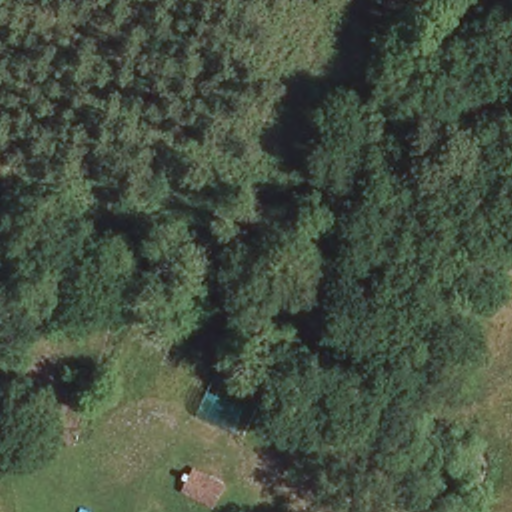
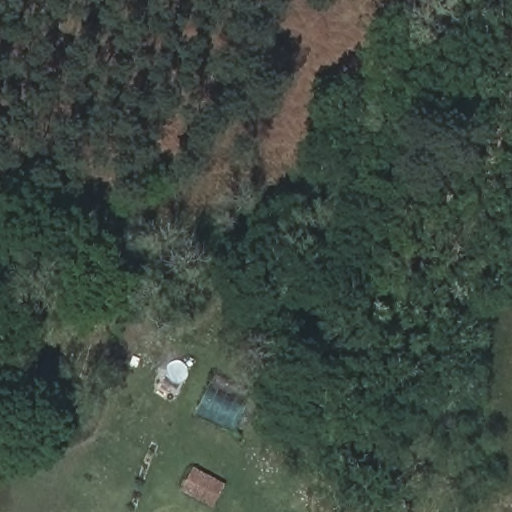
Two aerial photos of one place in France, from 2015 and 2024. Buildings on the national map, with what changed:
unchanged [(224,489),(214,505),(185,487),(195,471),(224,489)]

